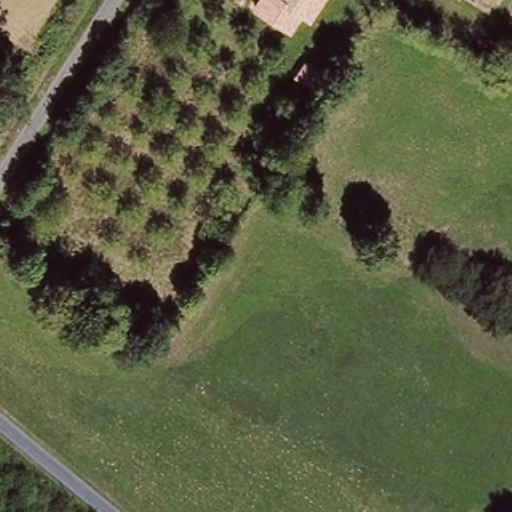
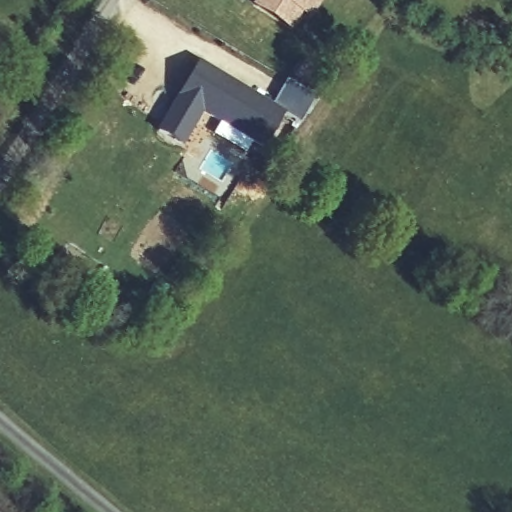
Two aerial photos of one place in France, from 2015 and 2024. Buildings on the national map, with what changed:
unchanged [(302,15),(291,34),(251,7),(256,0),(326,0),(312,21),(302,15)]
new [(195,61),(268,108),(285,81),(313,99),(296,127),(280,116),(259,148),(197,109),(176,144),(152,129),(195,61)]

